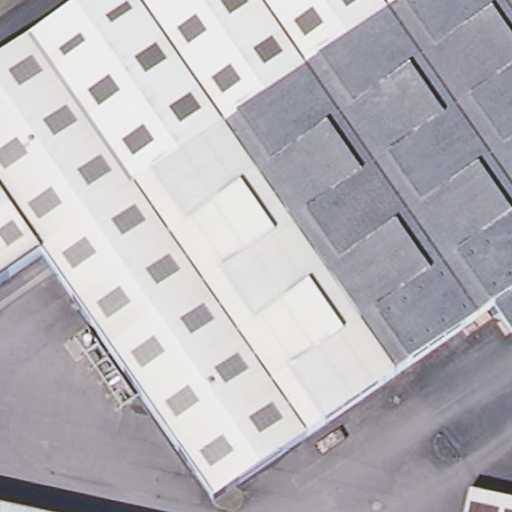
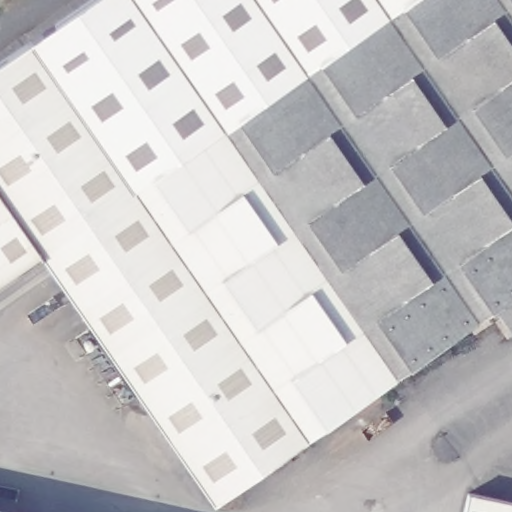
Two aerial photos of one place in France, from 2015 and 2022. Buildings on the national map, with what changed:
unchanged [(85,0),(394,0),(220,120),(135,180),(33,36),(85,0)]
unchanged [(394,0),(512,0),(512,290),(486,307),(394,371),(220,120),(394,0)]
unchanged [(213,496),(42,252),(0,192),(0,59),(33,36),(135,180),(220,120),(394,371),(315,426),(310,430),(233,483),(213,496)]
unchanged [(0,192),(42,252),(0,282),(0,192)]
unchanged [(511,332),(498,313),(492,316),(486,307),(512,290),(512,331),(511,332)]
unchanged [(470,492),(512,500),(512,512),(466,512),(470,492)]
unchanged [(0,507),(22,512),(0,512),(0,507)]

